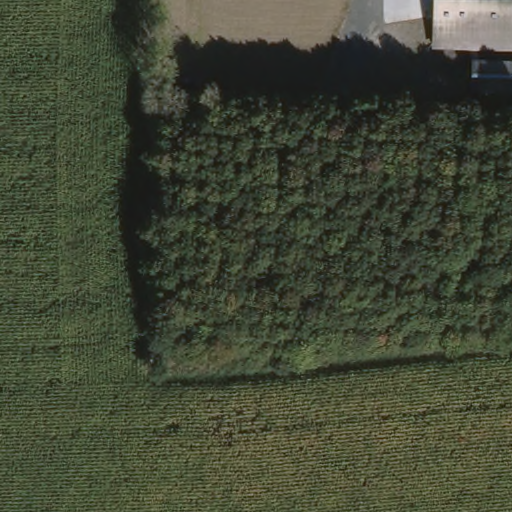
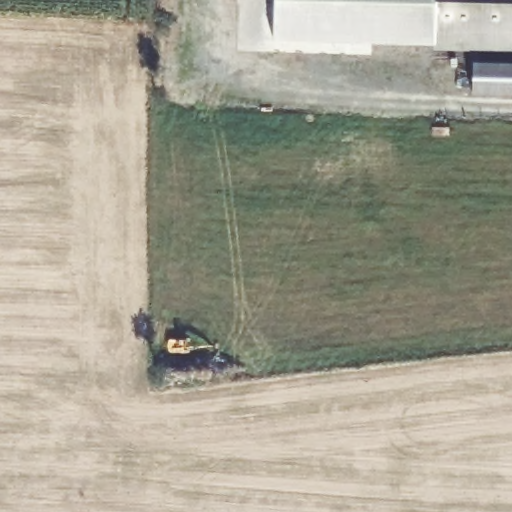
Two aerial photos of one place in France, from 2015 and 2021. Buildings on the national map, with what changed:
new [(442,39),(433,37),(432,45),(274,39),(275,0),(444,0),(442,39)]
unchanged [(512,41),(442,39),(444,0),(512,0),(512,41)]
unchanged [(512,64),(512,92),(485,91),(485,63),(512,64)]

